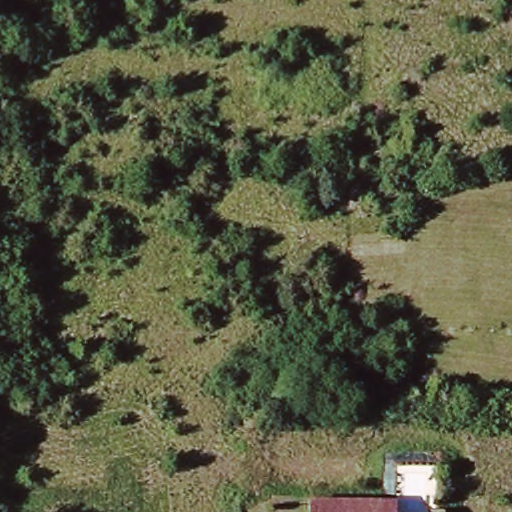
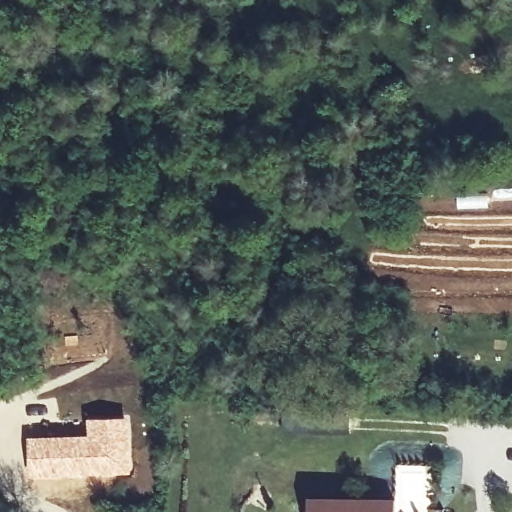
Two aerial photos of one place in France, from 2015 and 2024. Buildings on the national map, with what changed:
new [(87,434),(86,417),(129,416),(131,475),(28,480),(26,437),(87,434)]
unchanged [(395,512),(309,512),(309,500),(395,497),(395,512)]

